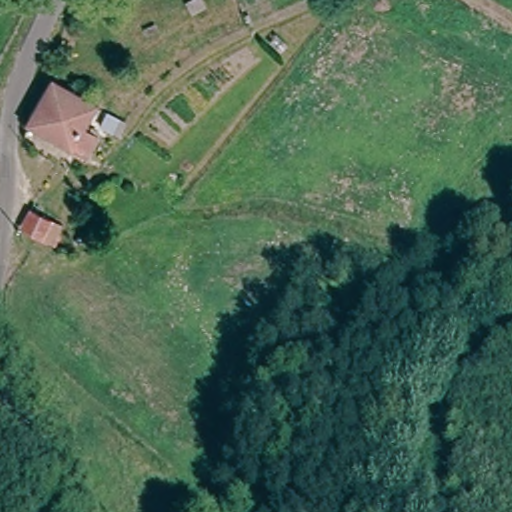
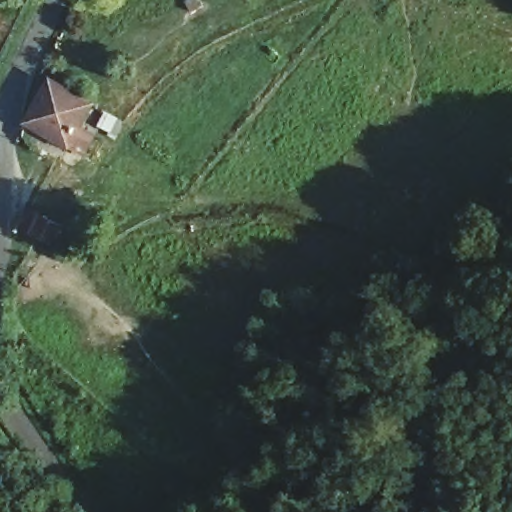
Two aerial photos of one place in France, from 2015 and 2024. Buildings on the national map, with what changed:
unchanged [(44,85),(92,109),(78,134),(94,144),(81,164),(23,130),(25,123),(44,85)]
unchanged [(48,232),(39,250),(6,234),(15,214),(48,232)]

